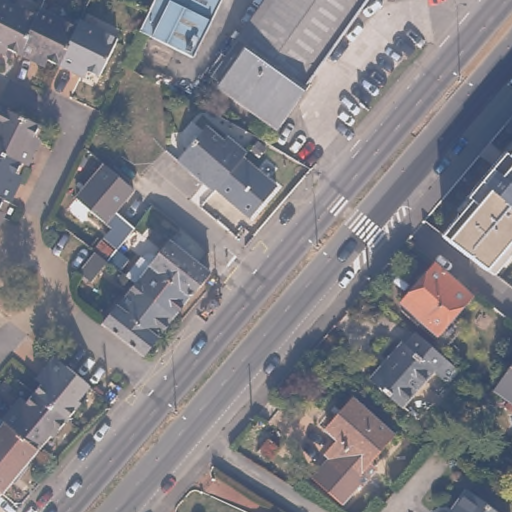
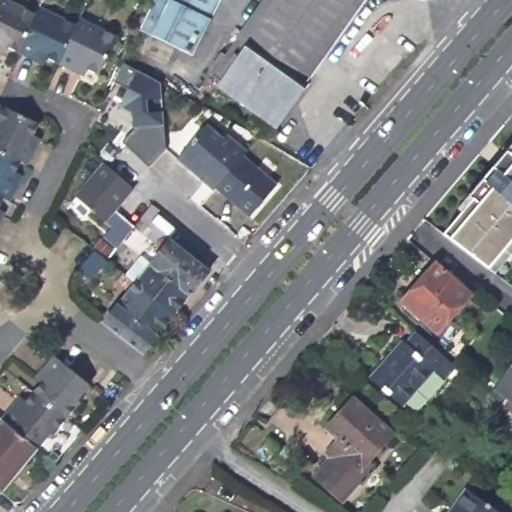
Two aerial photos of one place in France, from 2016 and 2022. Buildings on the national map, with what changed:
unchanged [(43,60),(34,56),(5,41),(2,49),(0,48),(0,0),(8,0),(16,4),(18,1),(39,11),(40,8),(58,16),(60,13),(80,23),(82,20),(98,28),(99,25),(120,35),(103,73),(89,66),(85,73),(75,68),(47,53),(43,60)]
unchanged [(139,25),(151,0),(219,0),(194,53),(139,25)]
unchanged [(209,76),(260,0),(362,0),(275,121),(209,76)]
new [(125,66),(163,86),(168,153),(151,171),(123,146),(136,132),(137,115),(123,108),(130,92),(116,86),(125,66)]
unchanged [(44,121),(37,136),(44,140),(39,148),(33,161),(26,159),(19,172),(26,176),(22,185),(15,199),(8,196),(0,211),(8,214),(4,223),(0,230),(0,99),(8,103),(44,121)]
unchanged [(179,161),(208,127),(224,141),(228,137),(248,154),(243,159),(218,190),(215,192),(205,184),(202,181),(193,174),(179,161)]
unchanged [(278,188),(252,219),(218,190),(243,159),(278,188)]
unchanged [(79,272),(97,249),(100,252),(110,239),(104,234),(113,225),(78,195),(106,161),(134,185),(135,185),(116,207),(135,224),(118,246),(108,258),(89,281),(79,272)]
unchanged [(508,189),(512,183),(512,192),(508,189)]
unchanged [(512,192),(512,263),(474,234),(508,189),(512,192)]
unchanged [(146,291),(140,286),(129,276),(144,258),(154,266),(183,232),(223,264),(179,317),(146,291)]
unchanged [(473,295),(438,335),(401,302),(435,262),(473,295)]
unchanged [(145,358),(107,327),(140,286),(146,291),(179,317),(145,358)]
unchanged [(397,338),(401,340),(412,328),(451,361),(439,375),(429,367),(399,404),(364,376),(397,338)]
unchanged [(25,401),(44,379),(36,373),(44,365),(54,352),(89,382),(78,397),(80,399),(51,433),(49,431),(37,447),(1,417),(10,405),(18,396),(25,401)]
unchanged [(512,367),(512,392),(500,384),(512,367)]
unchanged [(393,435),(369,462),(378,470),(362,487),(358,484),(343,502),(314,476),(330,458),(327,454),(339,441),(327,430),(355,400),(393,435)]
unchanged [(37,447),(0,491),(0,416),(1,417),(37,447)]
unchanged [(457,510),(453,507),(467,489),(501,512),(455,512),(457,510)]

